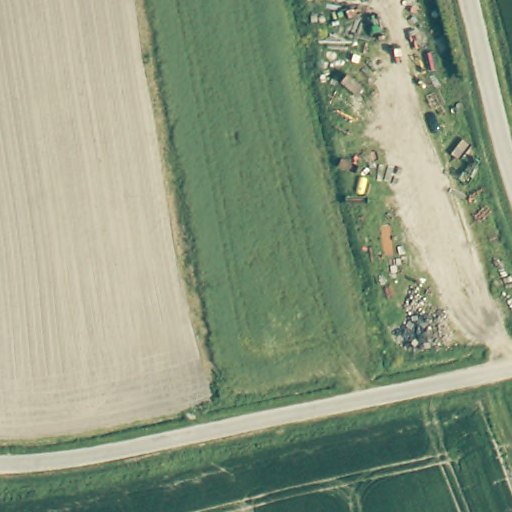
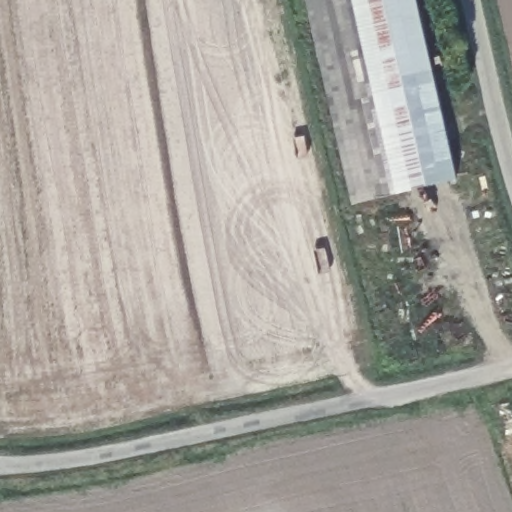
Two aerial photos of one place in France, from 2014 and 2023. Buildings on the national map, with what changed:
new [(306,0),(416,0),(457,180),(352,204),(306,0)]

